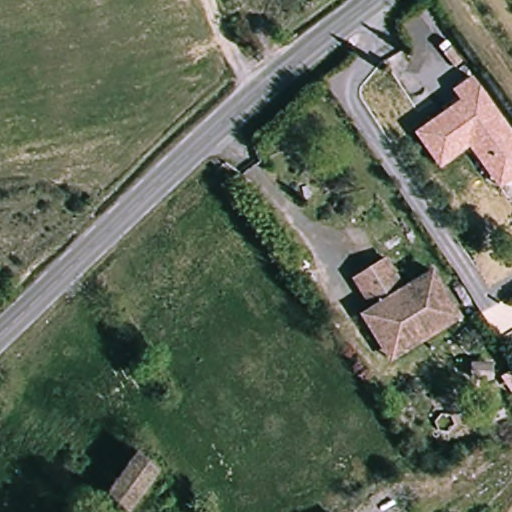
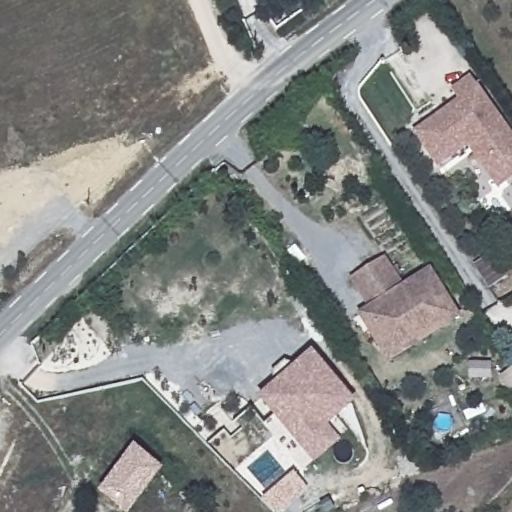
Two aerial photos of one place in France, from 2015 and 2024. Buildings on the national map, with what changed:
unchanged [(452,89),(471,76),(479,88),(512,132),(512,178),(499,188),(469,150),(441,167),(415,131),(460,100),(452,89)]
unchanged [(372,308),(355,278),(386,261),(403,290),(431,274),(458,322),(430,338),(422,324),(388,342),(370,309),(372,308)]
unchanged [(370,309),(388,342),(422,324),(430,338),(386,363),(359,315),(370,309)]
new [(313,464),(301,449),(263,401),(314,360),(353,408),(324,431),(335,446),(313,464)]
unchanged [(156,469),(127,506),(104,491),(135,450),(156,469)]

